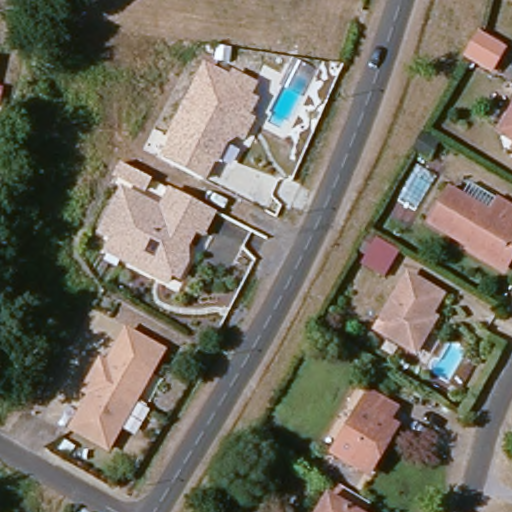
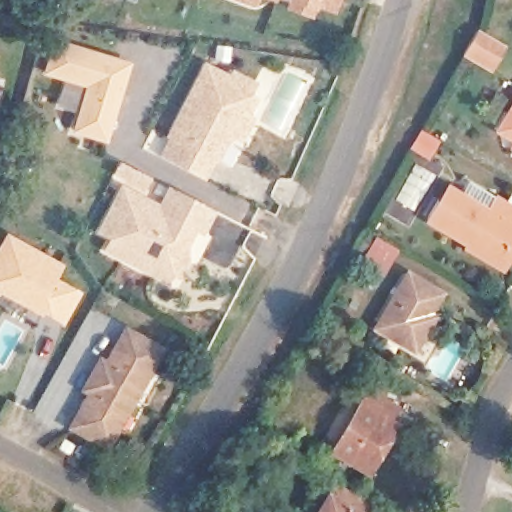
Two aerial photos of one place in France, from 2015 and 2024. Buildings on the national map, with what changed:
new [(236,0),(261,0),(258,8),(236,0)]
new [(269,0),(279,0),(277,3),(269,0)]
new [(319,10),(316,20),(286,11),(290,1),(287,0),(342,0),(337,15),(319,10)]
unchanged [(465,53),(468,47),(478,29),(506,46),(495,63),(492,69),(465,53)]
new [(50,42),(124,62),(103,139),(72,130),(85,85),(41,72),(50,42)]
unchanged [(235,69),(260,83),(254,96),(260,100),(252,116),(259,119),(245,142),(237,139),(227,145),(220,159),(208,181),(161,157),(169,136),(204,64),(230,77),(235,69)]
unchanged [(508,152),(512,147),(502,141),(494,136),(504,120),(512,105),(512,154),(508,152)]
unchanged [(439,139),(428,157),(412,147),(422,129),(439,139)]
unchanged [(151,176),(146,187),(114,172),(120,161),(151,176)]
unchanged [(500,268),(430,226),(450,192),(463,200),(471,186),(512,211),(512,261),(506,272),(500,268)]
unchanged [(101,230),(122,187),(161,207),(172,187),(214,208),(203,231),(196,227),(187,246),(188,260),(180,276),(171,271),(168,277),(155,270),(153,272),(107,249),(94,242),(101,230)]
unchanged [(367,255),(357,249),(367,233),(377,239),(367,255)]
new [(0,250),(8,235),(61,265),(54,278),(80,292),(64,320),(51,312),(44,308),(48,300),(41,312),(36,322),(0,302),(0,250)]
unchanged [(415,352),(377,328),(409,274),(443,295),(431,314),(436,317),(430,327),(415,352)]
unchanged [(109,447),(72,427),(91,393),(85,389),(101,360),(108,363),(127,330),(163,350),(109,447)]
unchanged [(370,474),(333,452),(369,391),(397,408),(390,421),(398,426),(389,441),(380,457),(370,474)]
unchanged [(363,512),(362,512),(320,512),(332,493),(363,512)]

